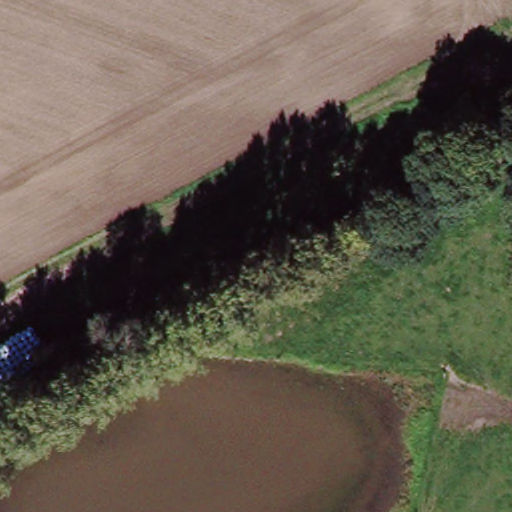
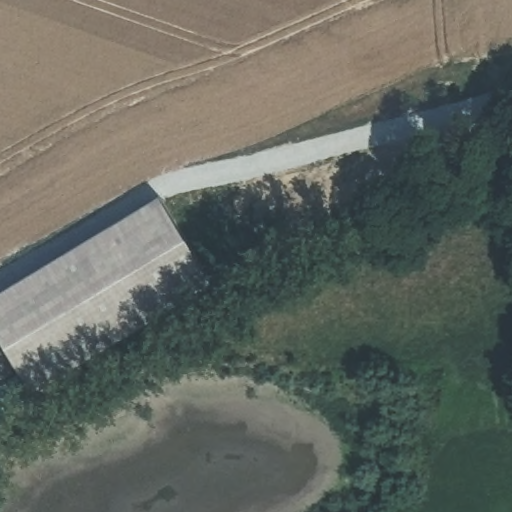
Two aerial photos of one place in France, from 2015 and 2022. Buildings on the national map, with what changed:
new [(210,276),(29,385),(0,337),(0,287),(159,191),(210,276)]

